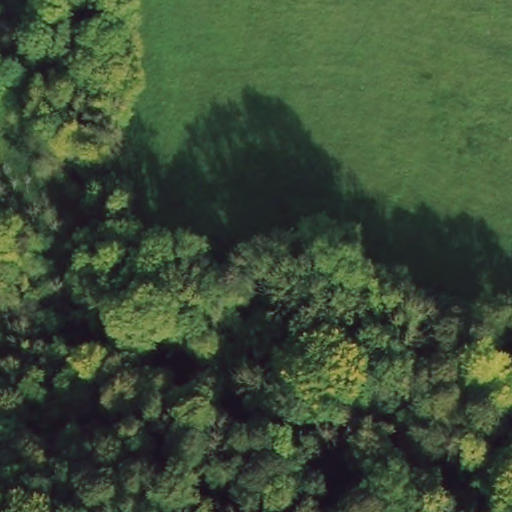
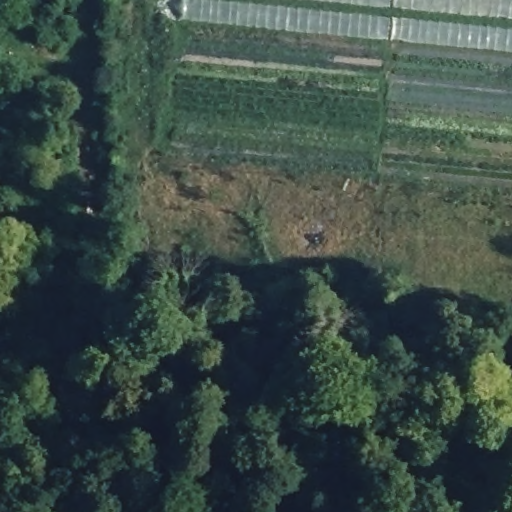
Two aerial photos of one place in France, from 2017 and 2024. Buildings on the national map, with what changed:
new [(512,52),(181,19),(183,0),(512,0),(512,52)]

